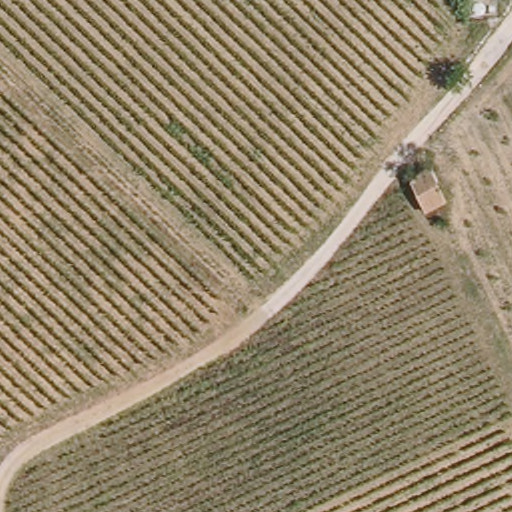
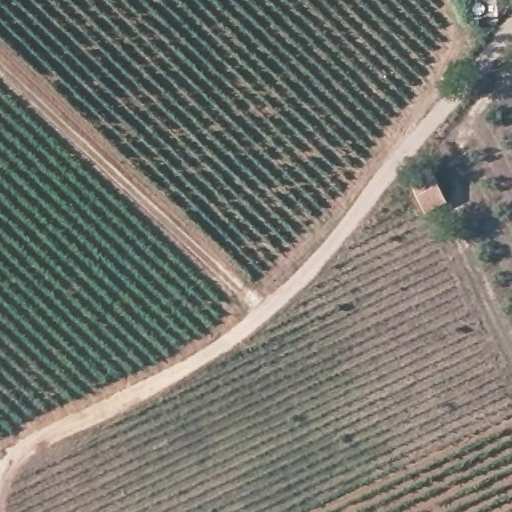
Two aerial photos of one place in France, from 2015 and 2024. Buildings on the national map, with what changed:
unchanged [(433,170),(447,203),(429,212),(414,179),(433,170)]

